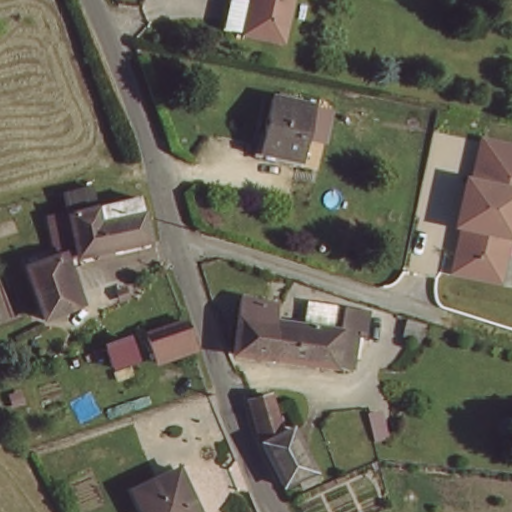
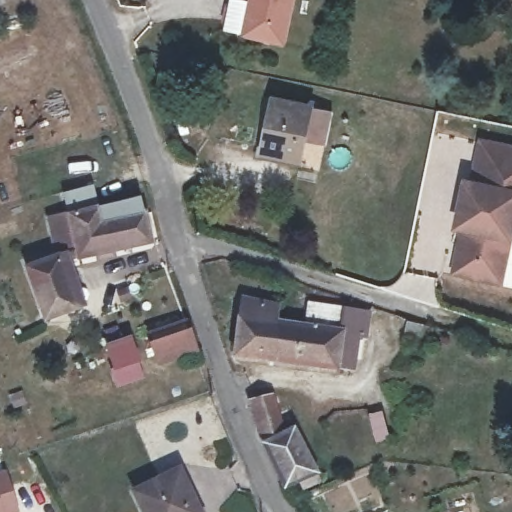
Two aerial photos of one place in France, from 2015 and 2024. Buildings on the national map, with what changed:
unchanged [(225,29),(229,0),(236,0),(248,2),(249,0),(287,0),(278,43),(225,29)]
unchanged [(269,99),(310,106),(298,162),(258,155),(269,99)]
unchanged [(460,249),(465,220),(458,219),(467,175),(474,176),(482,135),(512,140),(512,219),(505,258),(502,272),(457,264),(460,249)]
unchanged [(25,272),(57,259),(48,225),(67,220),(62,200),(90,192),(94,202),(97,212),(109,255),(82,261),(80,254),(58,260),(80,310),(49,323),(25,272)]
unchanged [(97,212),(119,207),(139,202),(152,245),(135,249),(109,255),(97,212)]
unchanged [(235,360),(238,303),(264,306),(261,325),(281,328),(275,364),(235,360)]
unchanged [(281,328),(302,330),(303,308),(342,310),(338,370),(275,364),(281,328)]
unchanged [(192,320),(199,350),(160,360),(152,330),(192,320)]
unchanged [(140,356),(115,363),(109,346),(115,344),(135,339),(140,356)]
unchanged [(285,430),(291,427),(313,466),(281,484),(247,411),(269,401),(285,430)]
new [(5,470),(18,512),(0,512),(0,471),(5,470)]
unchanged [(184,472),(200,512),(145,512),(137,491),(184,472)]

